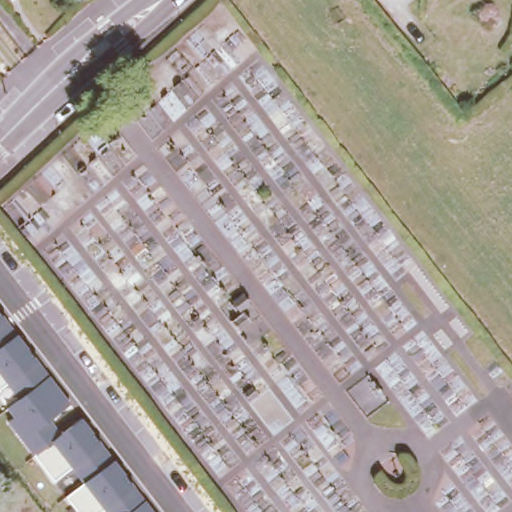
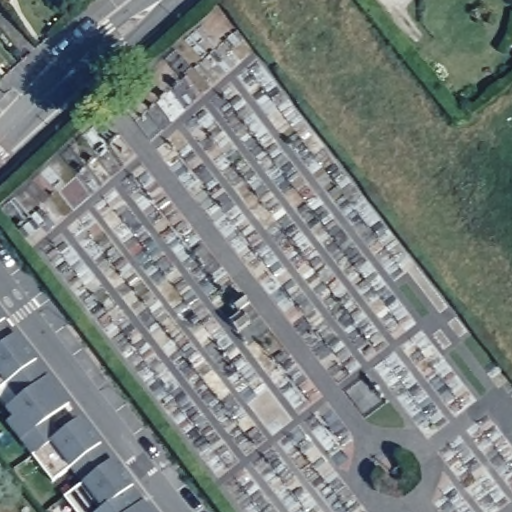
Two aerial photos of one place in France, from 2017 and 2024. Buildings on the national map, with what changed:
unchanged [(0,347),(0,312),(17,334),(0,347)]
unchanged [(18,398),(5,384),(0,388),(0,347),(17,334),(37,360),(49,376),(18,398)]
unchanged [(51,442),(33,455),(7,421),(13,417),(5,407),(18,398),(49,376),(70,403),(50,418),(62,434),(51,442)]
unchanged [(83,482),(70,467),(53,481),(33,455),(51,442),(62,434),(81,418),(114,460),(83,482)]
unchanged [(104,512),(102,510),(99,512),(78,512),(65,496),(83,482),(114,460),(135,486),(145,498),(127,512),(104,512)]
unchanged [(155,512),(127,512),(145,498),(155,512)]

